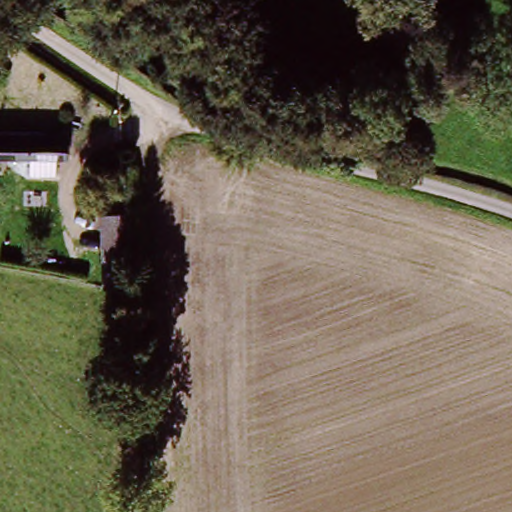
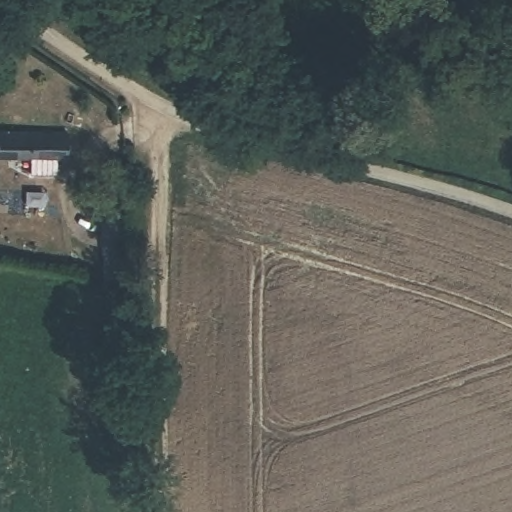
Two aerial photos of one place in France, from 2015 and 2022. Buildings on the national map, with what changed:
unchanged [(31,157),(0,156),(0,133),(48,134),(84,136),(83,158),(59,157),(58,174),(31,172),(31,157)]
unchanged [(128,288),(104,289),(103,217),(125,217),(128,288)]

